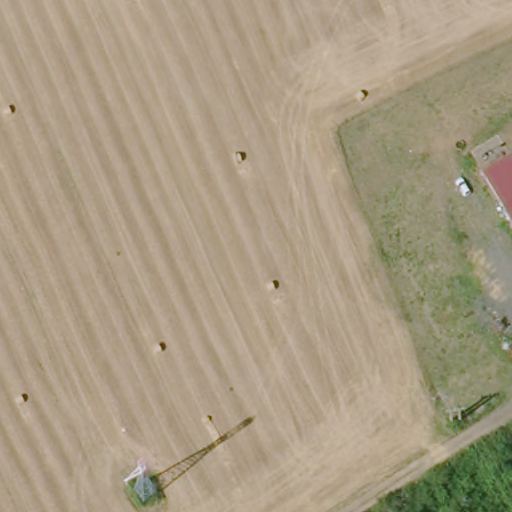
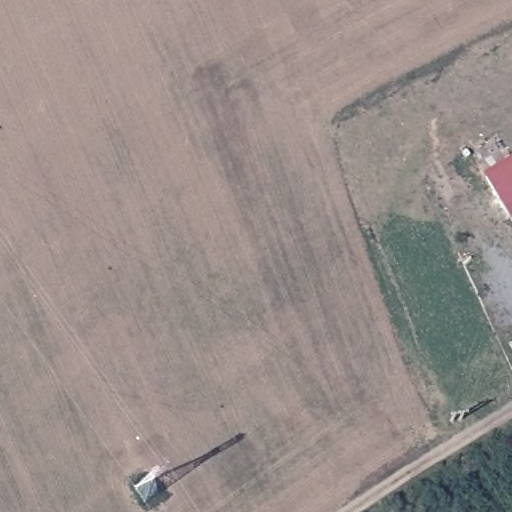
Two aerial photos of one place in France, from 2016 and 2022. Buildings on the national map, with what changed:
unchanged [(510,161),(512,163),(512,224),(480,176),(510,161)]

